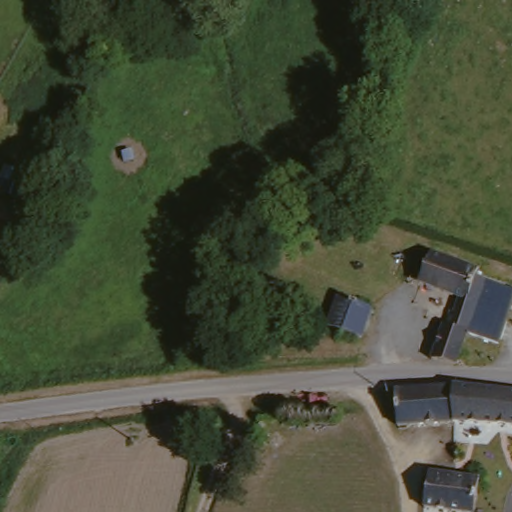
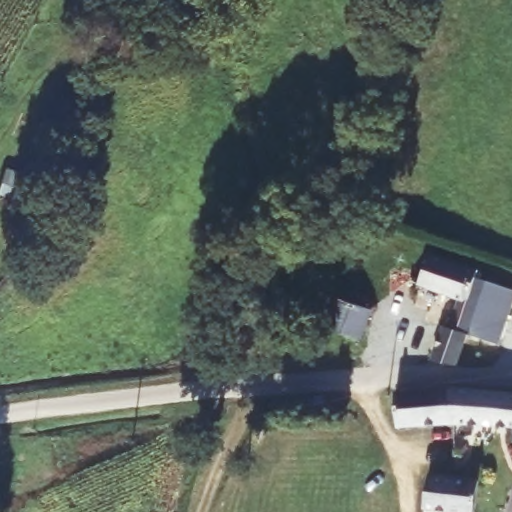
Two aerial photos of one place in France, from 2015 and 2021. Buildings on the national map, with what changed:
unchanged [(26,209),(0,198),(0,190),(7,173),(35,185),(26,209)]
unchanged [(419,281),(426,256),(474,272),(471,279),(511,293),(493,346),(460,335),(450,366),(428,358),(439,325),(441,326),(446,312),(450,313),(455,298),(418,284),(419,281)]
unchanged [(358,339),(325,328),(333,303),(366,314),(358,339)]
unchanged [(453,429),(395,427),(395,391),(453,395),(453,429)]
unchanged [(512,399),(512,431),(453,429),(453,395),(512,399)]
unchanged [(417,510),(418,477),(443,479),(443,465),(457,465),(470,466),(470,481),(468,512),(417,512),(417,510)]

